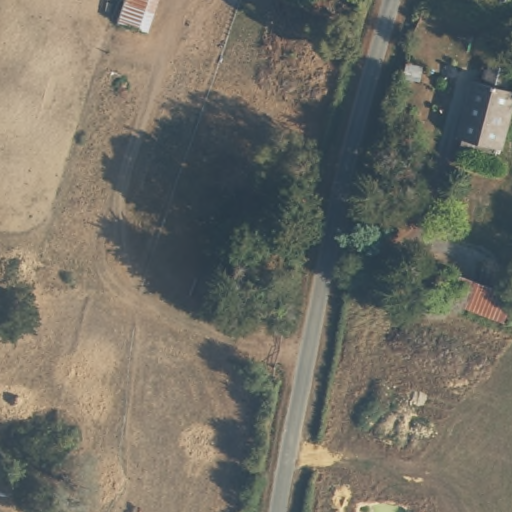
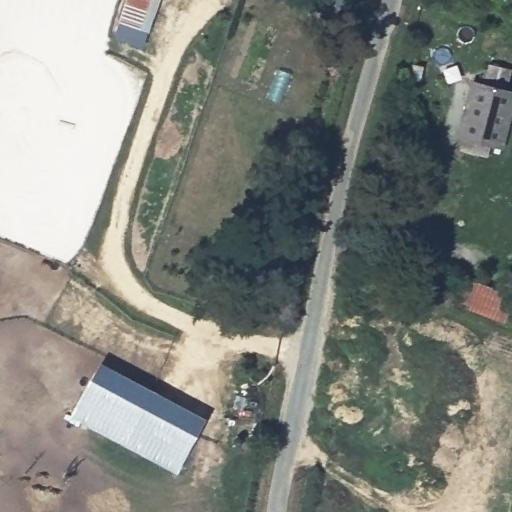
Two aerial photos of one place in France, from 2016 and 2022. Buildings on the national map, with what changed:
unchanged [(161,0),(151,33),(119,22),(126,0),(161,0)]
unchanged [(459,136),(473,81),(512,91),(512,108),(502,148),(459,136)]
unchanged [(448,301),(459,273),(512,292),(512,307),(506,323),(448,301)]
new [(100,361),(206,417),(179,472),(71,416),(100,361)]

